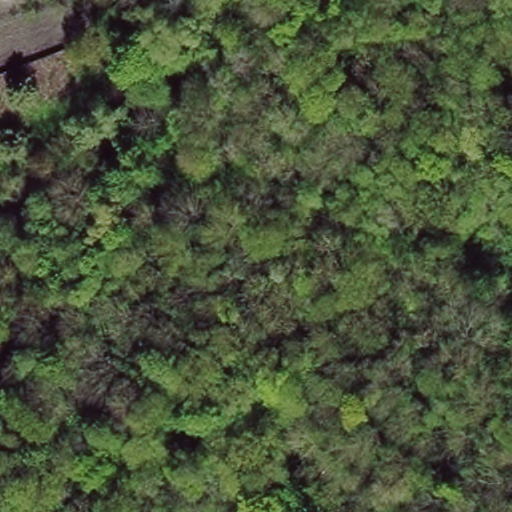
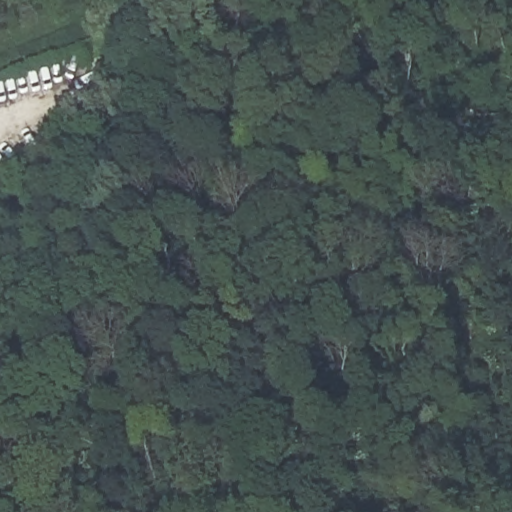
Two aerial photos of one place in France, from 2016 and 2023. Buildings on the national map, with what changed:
unchanged [(0,241),(0,238),(1,241),(0,241)]

